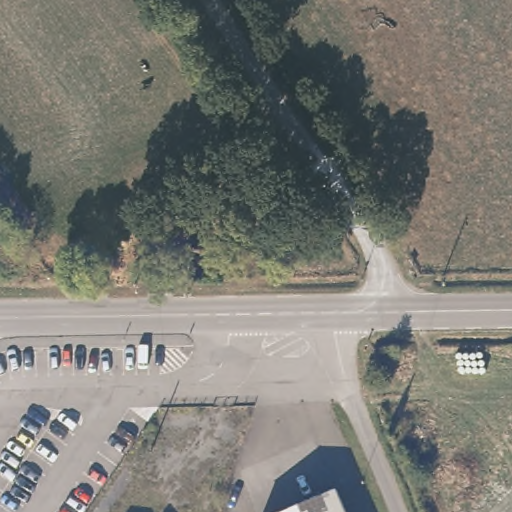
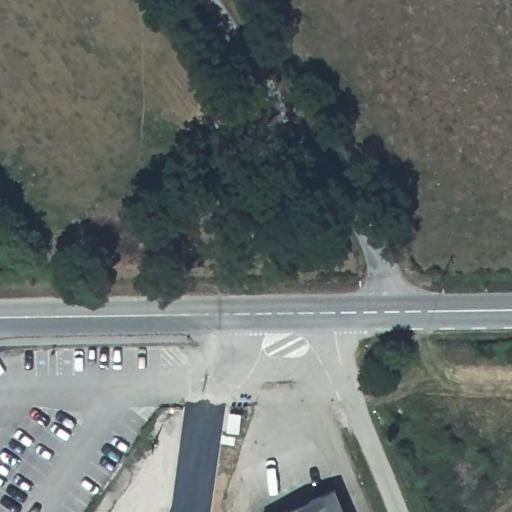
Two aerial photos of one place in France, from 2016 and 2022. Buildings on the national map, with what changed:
unchanged [(284,512),(327,491),(337,512),(284,512)]

